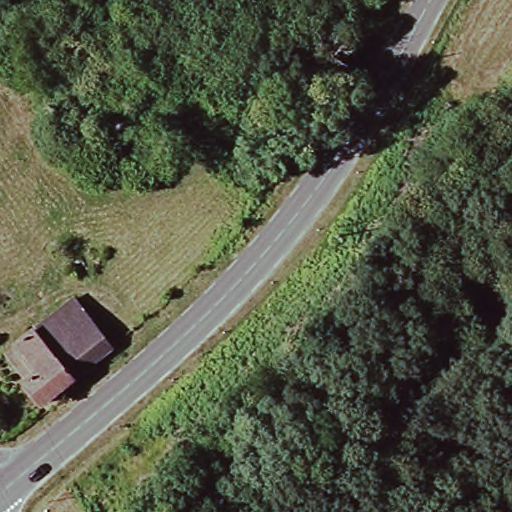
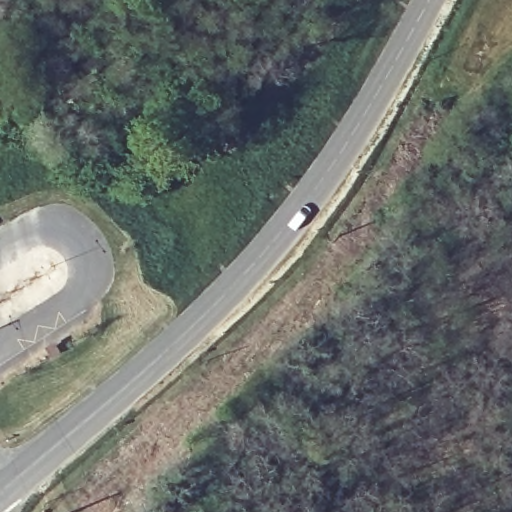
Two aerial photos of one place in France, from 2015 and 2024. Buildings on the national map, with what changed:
demolished [(121,347),(49,409),(23,378),(33,369),(15,345),(43,321),(42,315),(74,290),(121,347)]

